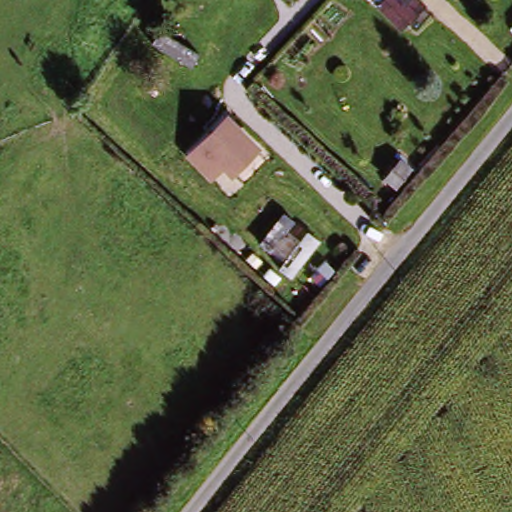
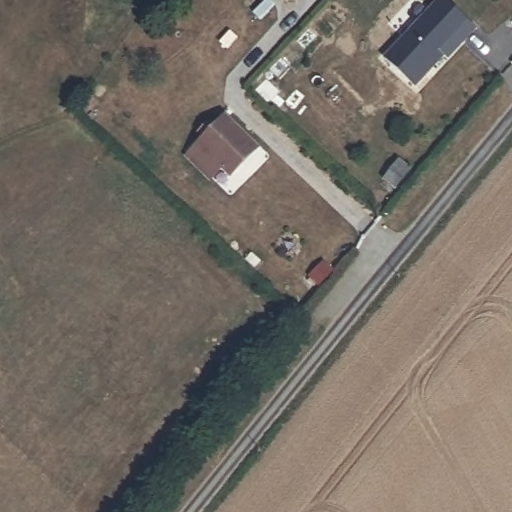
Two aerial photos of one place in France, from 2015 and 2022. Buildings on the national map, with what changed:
unchanged [(423,0),(430,9),(405,35),(380,12),(392,0),(423,0)]
new [(430,9),(438,0),(449,0),(473,21),(417,85),(387,59),(405,35),(430,9)]
new [(449,56),(445,53),(473,21),(477,24),(449,56)]
unchanged [(263,153),(232,179),(224,173),(212,184),(184,155),(227,112),(263,153)]
unchanged [(289,217),(302,227),(297,232),(315,245),(298,269),(266,247),(289,217)]

